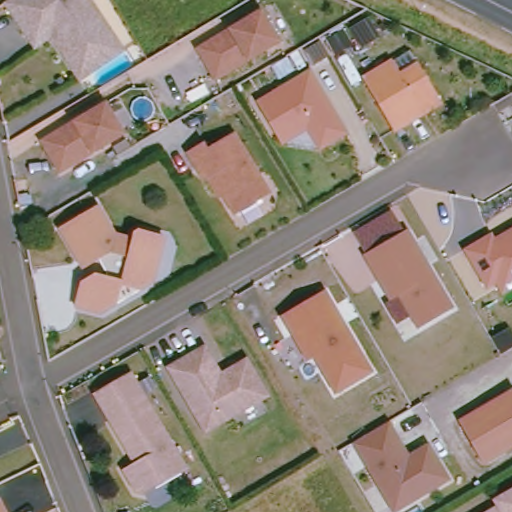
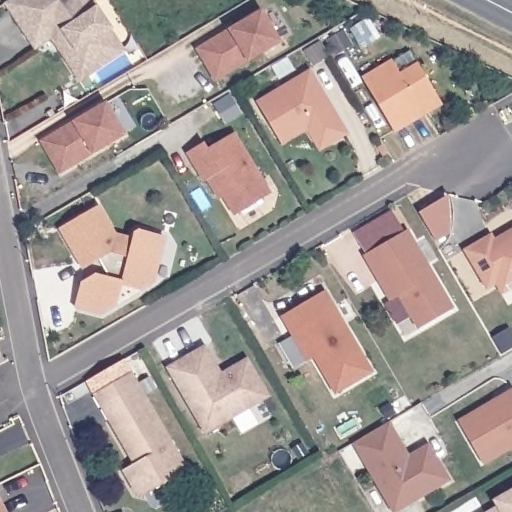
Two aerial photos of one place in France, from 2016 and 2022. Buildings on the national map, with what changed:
unchanged [(10,0),(88,0),(115,43),(80,65),(60,32),(66,29),(61,21),(27,42),(3,4),(10,0)]
unchanged [(261,11),(280,42),(215,81),(197,49),(261,11)]
unchanged [(61,21),(66,29),(60,32),(80,65),(115,43),(123,56),(76,85),(49,40),(32,51),(27,42),(61,21)]
unchanged [(327,37),(343,27),(351,41),(335,50),(327,37)]
unchanged [(320,39),(327,52),(312,61),(305,48),(320,39)]
unchanged [(393,133),(361,80),(391,62),(400,76),(417,66),(440,105),(425,114),(408,124),(393,133)]
unchanged [(320,147),(312,135),(307,127),(281,142),(277,135),(256,100),(310,68),(325,93),(323,97),(326,102),(330,104),(340,119),(347,131),(320,147)]
unchanged [(106,104),(125,135),(60,173),(41,142),(106,104)]
unchanged [(207,144),(210,150),(237,135),(266,189),(263,202),(236,217),(222,192),(217,194),(210,180),(207,182),(191,153),(207,144)]
unchanged [(126,287),(122,305),(107,314),(80,307),(86,285),(100,276),(110,278),(113,267),(105,265),(103,262),(89,270),(80,256),(65,230),(101,207),(116,232),(119,237),(136,241),(138,234),(143,231),(161,236),(168,237),(163,258),(157,284),(145,292),(126,287)]
unchanged [(453,307),(417,329),(410,316),(396,323),(384,302),(388,299),(361,254),(365,252),(354,232),(390,212),(402,231),(406,228),(453,307)]
unchanged [(487,291),(465,253),(481,244),(491,237),(494,243),(512,232),(512,290),(502,296),(496,286),(487,291)]
unchanged [(323,288),(372,372),(333,395),(312,357),(306,362),(279,316),(323,288)]
unchanged [(165,367),(200,345),(210,360),(220,374),(245,358),(266,394),(205,431),(172,377),(165,367)]
unchanged [(142,490),(132,487),(120,466),(136,457),(128,445),(121,448),(97,405),(88,391),(125,370),(135,387),(182,466),(142,490)]
unchanged [(512,389),(512,446),(483,462),(460,420),(512,389)]
unchanged [(388,420),(407,453),(427,442),(448,478),(392,512),(391,512),(350,442),(388,420)]
unchanged [(496,506),(493,500),(512,489),(512,512),(485,512),(496,506)]
unchanged [(0,507),(3,512),(0,512),(0,507)]

